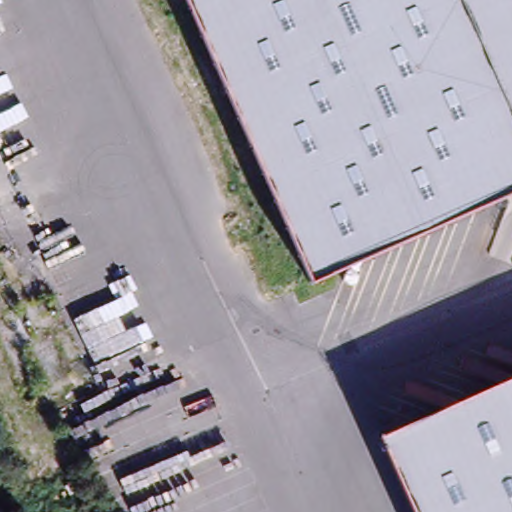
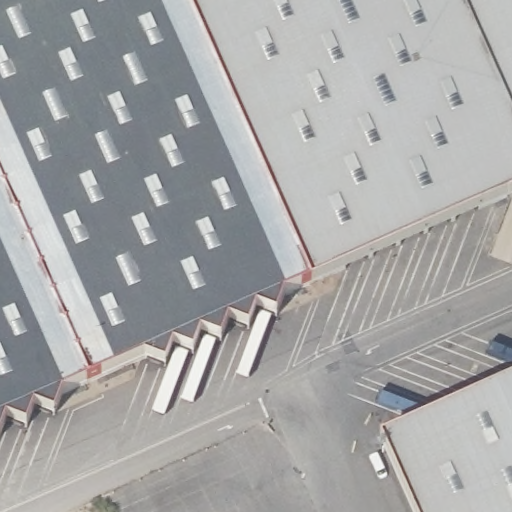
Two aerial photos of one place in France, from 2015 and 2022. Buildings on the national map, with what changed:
new [(0,422),(0,0),(186,0),(312,284),(0,422)]
unchanged [(186,0),(512,0),(512,195),(312,284),(186,0)]
demolished [(21,321),(20,314),(49,303),(54,313),(31,324),(41,345),(55,338),(76,383),(48,396),(11,329),(21,321)]
unchanged [(387,438),(512,382),(512,512),(419,512),(387,438)]

